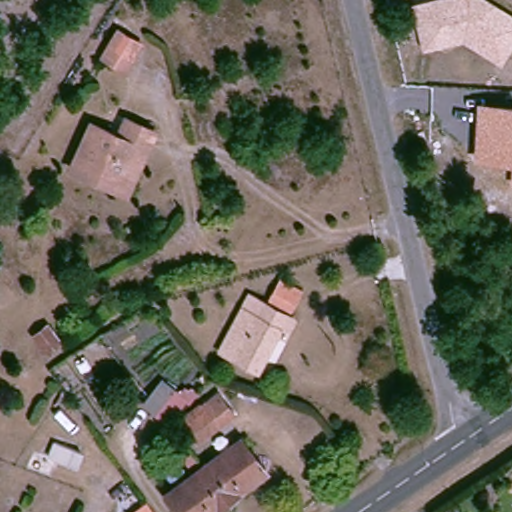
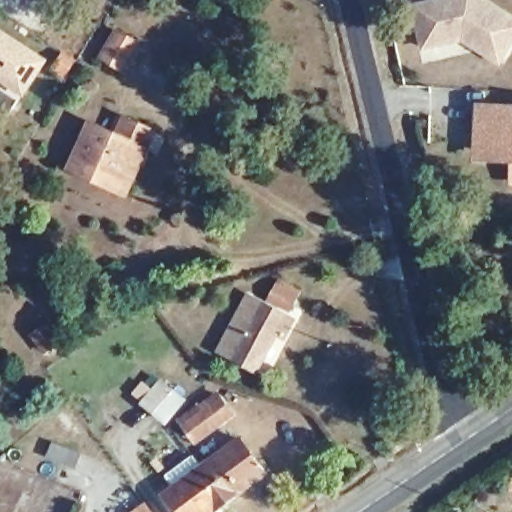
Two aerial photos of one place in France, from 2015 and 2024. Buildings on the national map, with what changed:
unchanged [(486,0),(512,16),(512,48),(501,67),(465,44),(423,53),(413,4),(429,0),(486,0)]
new [(47,57),(27,91),(0,74),(0,27),(47,57)]
unchanged [(119,66),(97,53),(112,27),(134,40),(119,66)]
unchanged [(512,106),(512,164),(475,162),(477,104),(512,106)]
unchanged [(108,181),(94,174),(74,165),(91,127),(95,119),(122,131),(130,114),(160,127),(147,157),(132,191),(108,181)]
unchanged [(248,291),(267,301),(280,277),(300,287),(287,312),(294,316),(285,333),(277,330),(257,367),(219,347),(248,291)]
unchanged [(50,342),(36,353),(23,337),(37,326),(50,342)]
unchanged [(154,415),(141,404),(162,378),(175,389),(154,415)]
unchanged [(215,388),(230,416),(190,443),(175,416),(215,388)]
unchanged [(245,433),(271,468),(233,497),(207,462),(245,433)]
unchanged [(213,512),(185,512),(169,490),(207,462),(233,497),(213,512)]
unchanged [(160,506),(165,512),(151,512),(160,506)]

